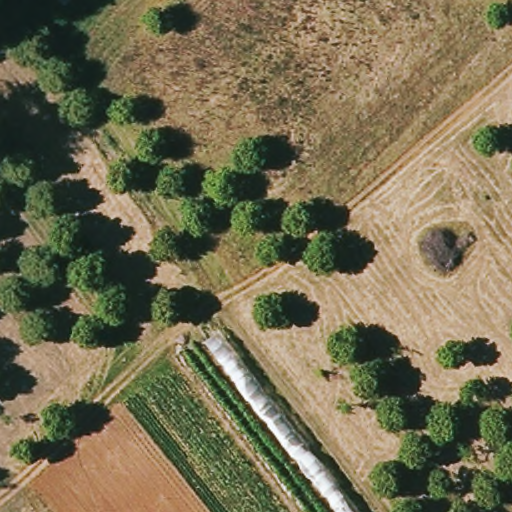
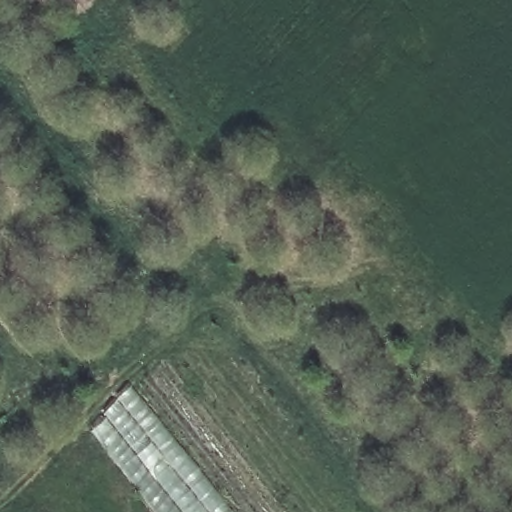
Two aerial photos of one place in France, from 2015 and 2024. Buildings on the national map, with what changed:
new [(105,416),(102,412),(130,385),(200,470),(233,512),(155,512),(90,430),(105,416)]

